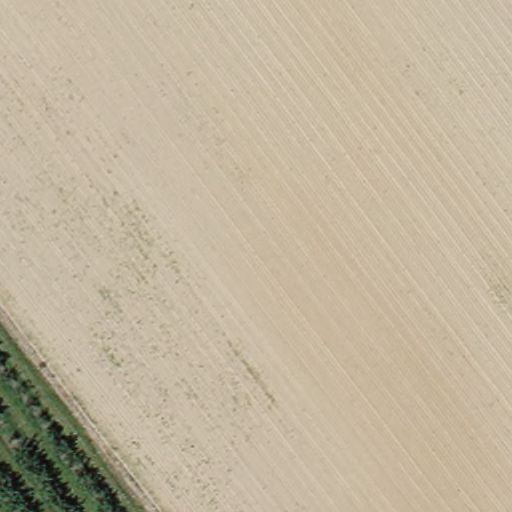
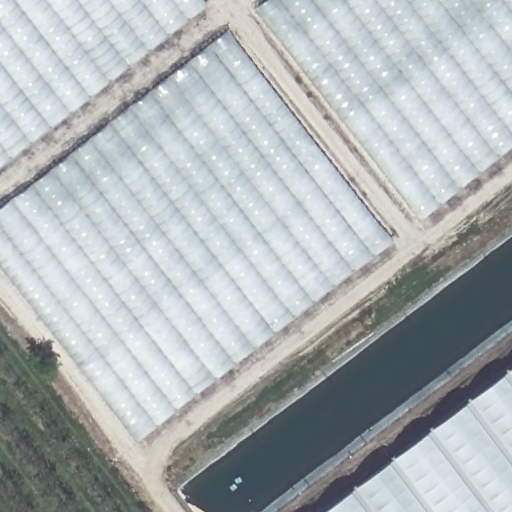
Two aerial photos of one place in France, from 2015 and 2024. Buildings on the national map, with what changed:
new [(0,168),(0,0),(201,0),(206,7),(0,168)]
new [(512,0),(512,149),(421,219),(257,9),(268,0),(512,0)]
new [(136,442),(0,265),(0,207),(227,32),(393,242),(136,442)]
new [(512,366),(512,512),(321,512),(512,366)]

